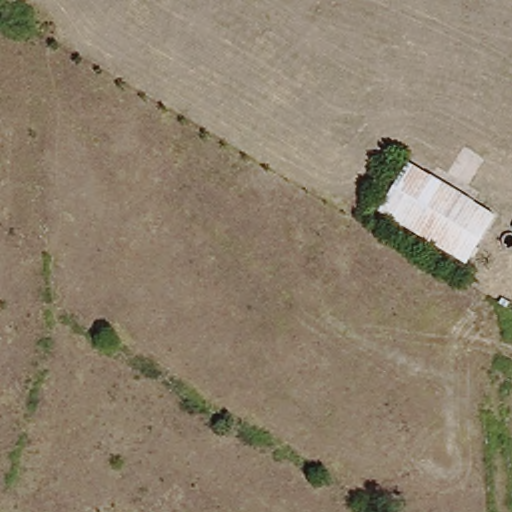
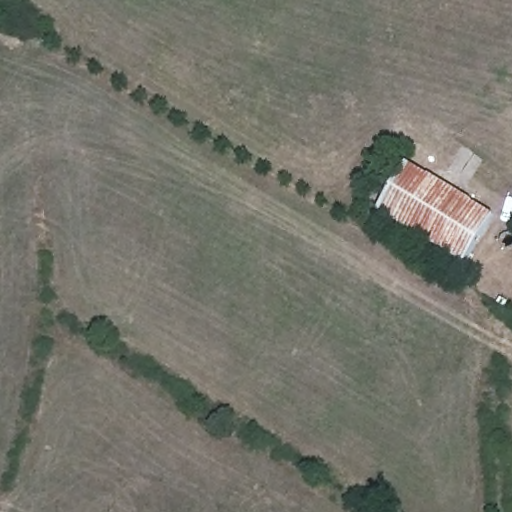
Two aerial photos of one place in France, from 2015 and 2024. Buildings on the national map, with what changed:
unchanged [(494,216),(465,264),(379,212),(409,164),(494,216)]

